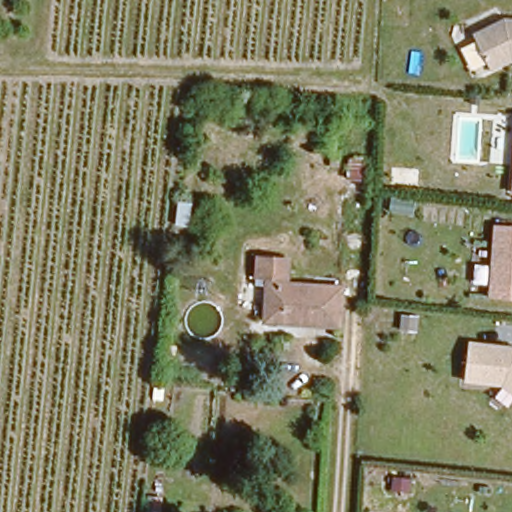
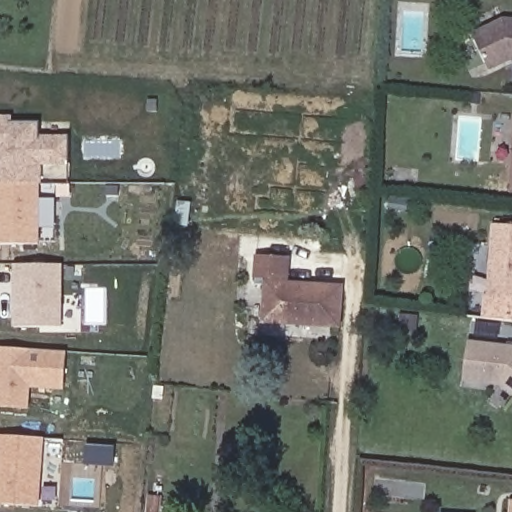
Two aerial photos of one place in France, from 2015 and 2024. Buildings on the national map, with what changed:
unchanged [(511,59),(492,69),(474,32),(503,18),(512,19),(512,60),(511,59)]
new [(0,183),(0,116),(7,116),(8,120),(38,121),(38,136),(68,136),(67,163),(67,183),(39,183),(0,183)]
new [(0,245),(0,183),(37,183),(37,244),(0,245)]
unchanged [(512,225),(512,295),(487,293),(492,223),(512,225)]
unchanged [(287,262),(287,281),(254,280),(255,260),(287,262)]
new [(60,327),(14,327),(13,264),(60,264),(60,327)]
unchanged [(341,289),(341,327),(266,324),(267,286),(341,289)]
unchanged [(499,384),(462,382),(467,339),(512,344),(512,395),(499,384)]
new [(28,386),(27,409),(0,408),(0,347),(64,351),(62,389),(28,386)]
new [(36,503),(0,501),(0,435),(39,436),(36,503)]
new [(512,500),(512,512),(511,512),(512,500)]

